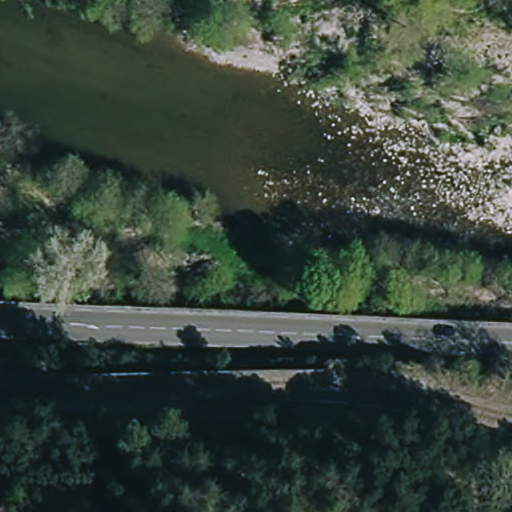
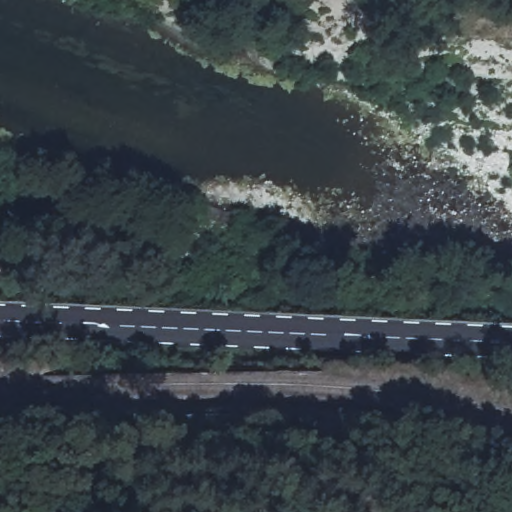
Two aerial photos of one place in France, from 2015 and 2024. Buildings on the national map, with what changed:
[]

